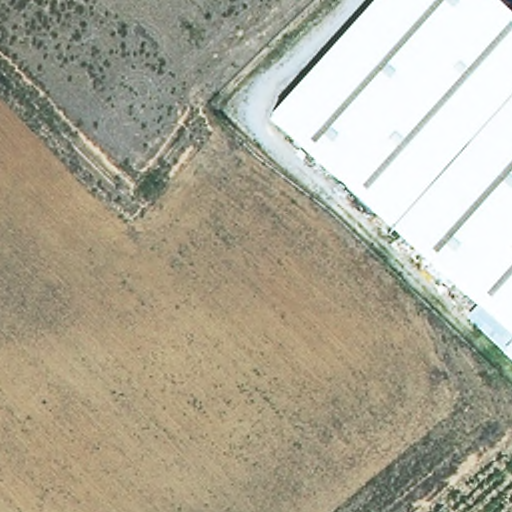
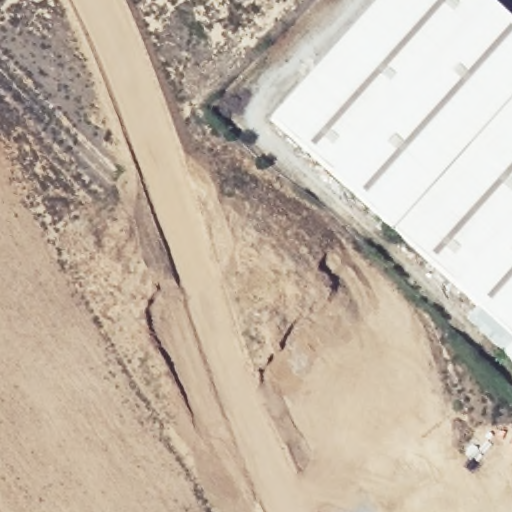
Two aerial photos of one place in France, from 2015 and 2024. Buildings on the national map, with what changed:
unchanged [(511,337),(268,112),(372,0),(492,0),(512,18),(512,336),(511,337)]
unchanged [(500,350),(511,337),(512,336),(512,361),(500,350)]

